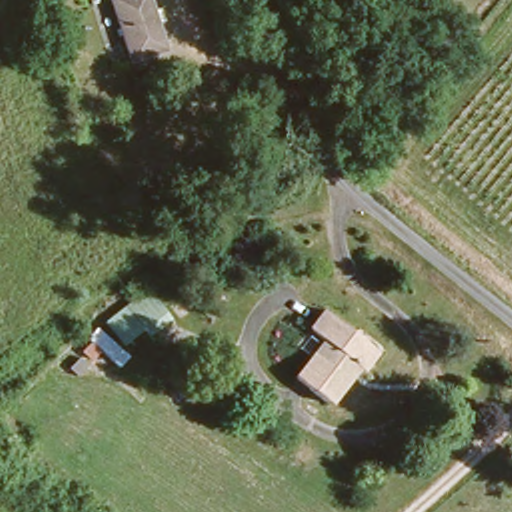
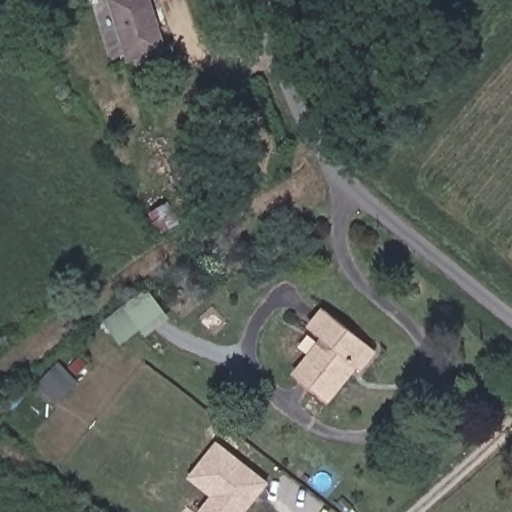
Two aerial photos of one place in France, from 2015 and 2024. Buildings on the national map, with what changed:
unchanged [(127,50),(113,0),(149,0),(160,40),(127,50)]
new [(151,292),(166,315),(119,346),(101,319),(151,292)]
unchanged [(357,374),(348,366),(318,401),(286,374),(318,338),(302,325),(325,298),(379,349),(357,374)]
new [(188,478),(217,441),(270,483),(247,512),(200,512),(211,496),(188,478)]

